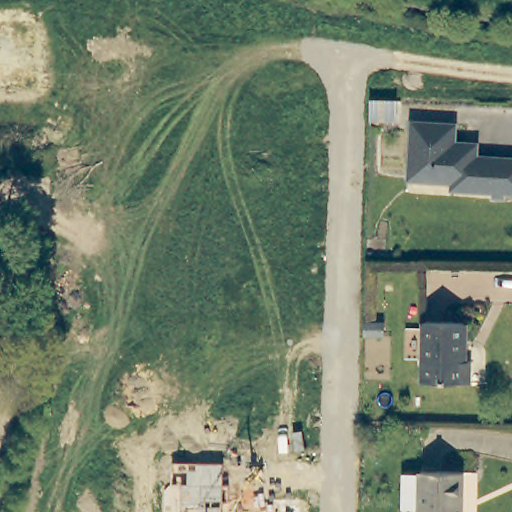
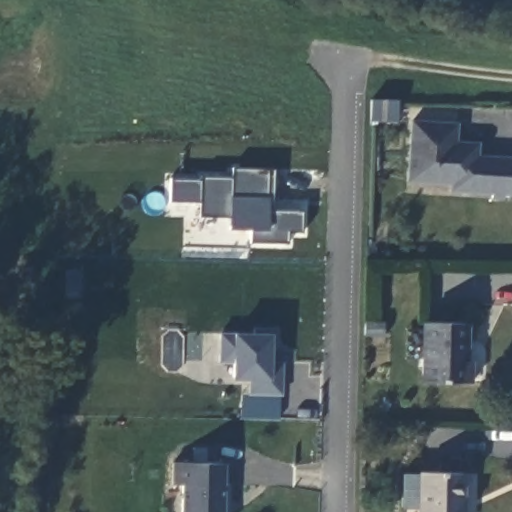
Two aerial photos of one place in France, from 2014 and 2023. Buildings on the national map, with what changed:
unchanged [(402,100),(401,119),(376,119),(376,100),(402,100)]
unchanged [(453,182),(408,179),(412,120),(457,123),(456,146),(477,147),(477,154),(512,156),(512,192),(505,192),(505,196),(493,195),(493,191),(472,190),(452,189),(453,182)]
new [(270,208),(305,209),(304,233),(291,233),(290,243),(249,242),(249,227),(227,226),(227,217),(197,214),(197,201),(170,200),(171,174),(230,176),(230,164),(271,167),(270,208)]
unchanged [(471,321),(470,358),(478,359),(477,381),(430,380),(430,319),(471,321)]
new [(248,394),(249,379),(234,378),(234,364),(217,363),(219,332),(237,332),(257,333),(257,327),(279,327),(278,348),(273,347),(272,361),(286,362),(285,394),(248,394)]
unchanged [(223,512),(183,512),(182,485),(174,484),(175,464),(224,464),(223,512)]
unchanged [(467,512),(425,512),(425,508),(407,508),(407,473),(425,473),(425,471),(467,471),(467,512)]

